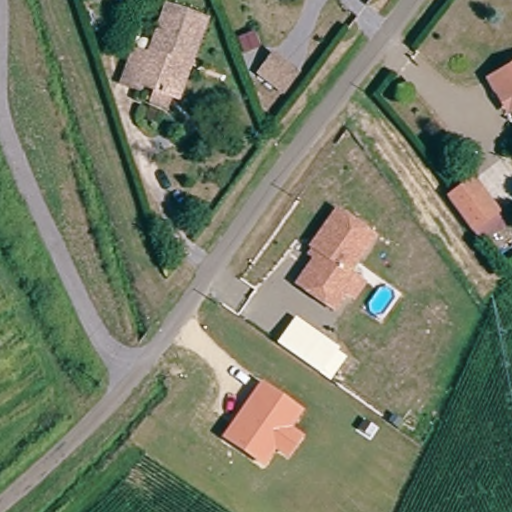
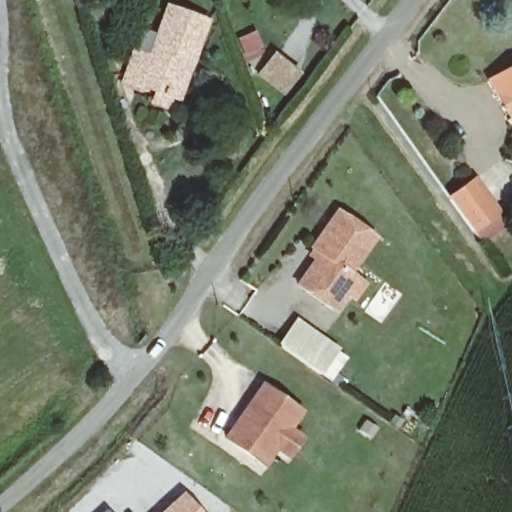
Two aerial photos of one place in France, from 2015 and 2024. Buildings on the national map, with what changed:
unchanged [(142,99),(148,83),(135,78),(132,86),(115,80),(127,50),(143,55),(163,1),(203,16),(187,58),(175,92),(164,89),(158,105),(142,99)]
unchanged [(303,74),(288,94),(262,75),(278,55),(303,74)]
unchanged [(498,95),(488,79),(510,66),(512,66),(512,114),(509,116),(498,95)]
unchanged [(498,220),(472,238),(449,203),(475,186),(498,220)]
unchanged [(354,273),(368,282),(356,304),(348,299),(337,313),(295,284),(313,258),(306,252),(336,209),(376,236),(354,273)]
unchanged [(295,317),(340,348),(338,352),(346,357),(330,381),(276,343),(295,317)]
unchanged [(265,467),(222,438),(261,381),(304,411),(293,427),(304,435),(287,459),(275,451),(265,467)]
new [(201,512),(159,512),(181,490),(201,512)]
new [(105,512),(106,510),(108,512),(105,512)]

